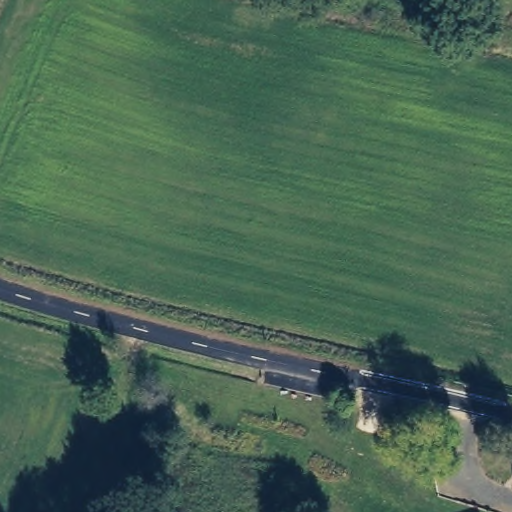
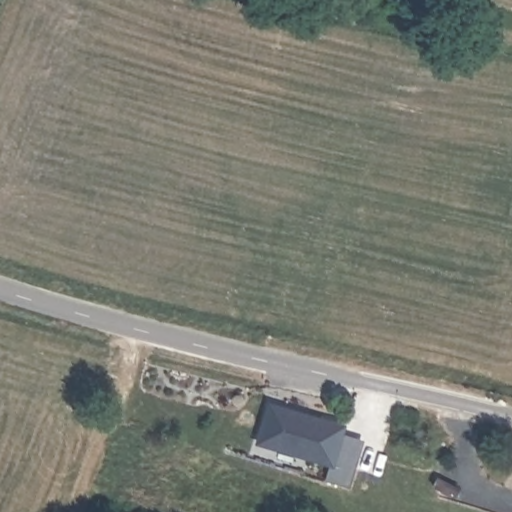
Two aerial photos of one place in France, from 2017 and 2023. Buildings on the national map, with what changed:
new [(351,487),(327,480),(331,466),(255,445),(269,402),(349,424),(346,433),(365,440),(351,487)]

